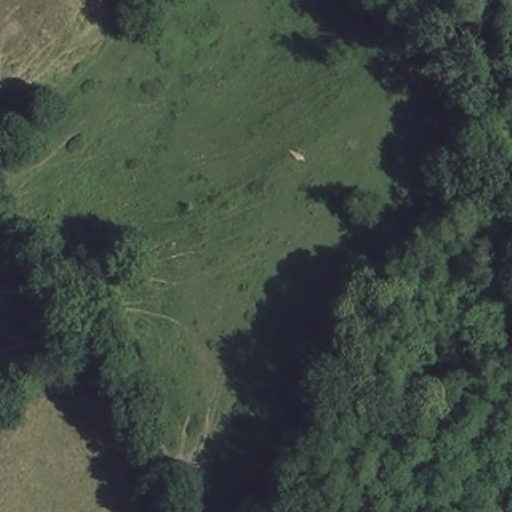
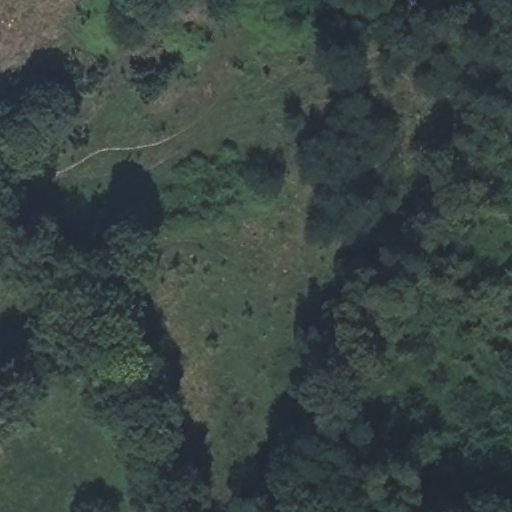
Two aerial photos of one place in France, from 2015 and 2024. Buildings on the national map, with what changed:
[]

